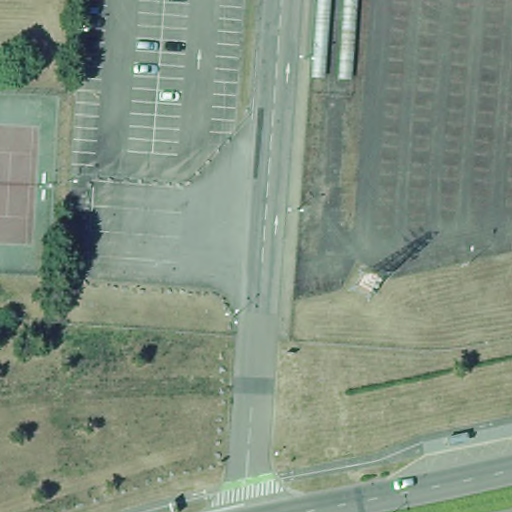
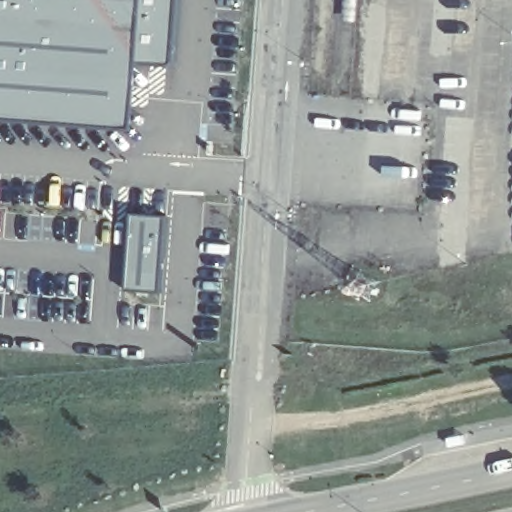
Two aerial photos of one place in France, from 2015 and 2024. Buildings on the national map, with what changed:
new [(0,113),(0,0),(173,0),(168,59),(139,58),(133,122),(0,113)]
new [(322,82),(308,82),(314,0),(328,0),(322,82)]
new [(350,82),(335,81),(341,0),(356,0),(350,82)]
new [(172,214),(164,288),(130,288),(138,213),(172,214)]

